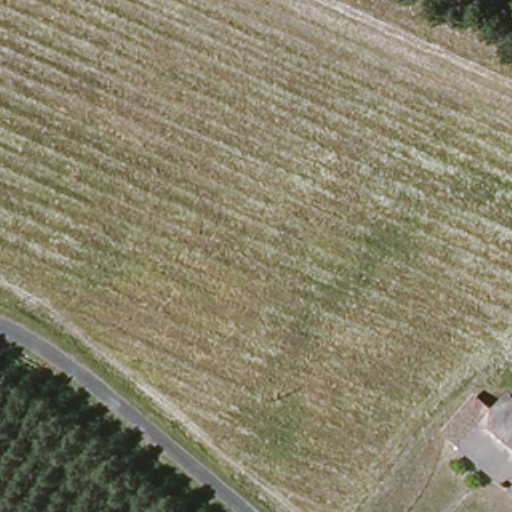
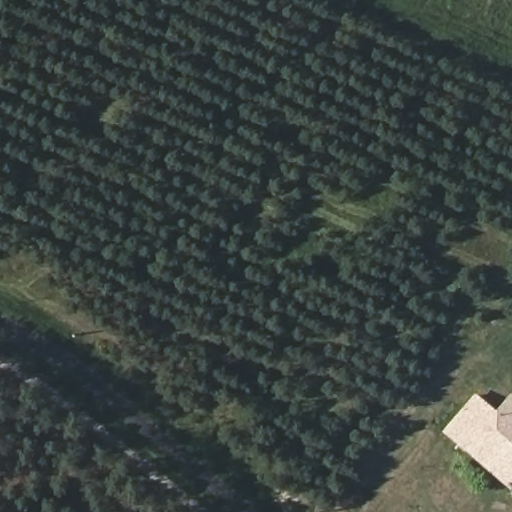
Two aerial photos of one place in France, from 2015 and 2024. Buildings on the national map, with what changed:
unchanged [(450,433),(478,398),(497,413),(512,399),(512,487),(464,447),(450,433)]

